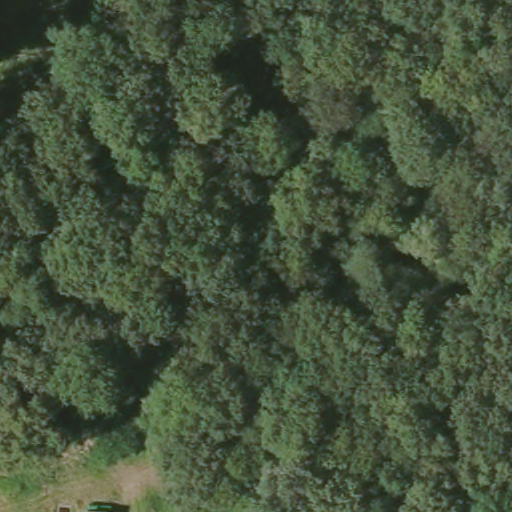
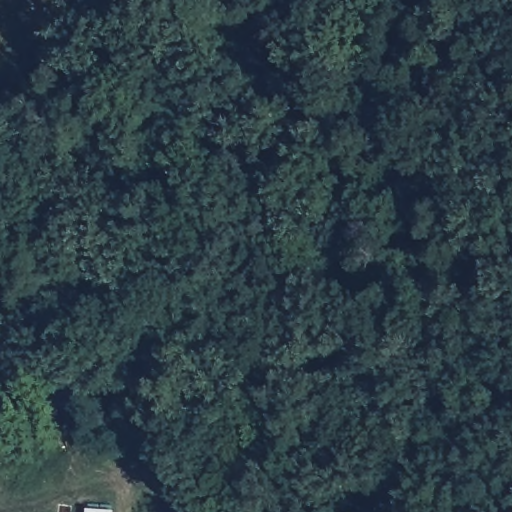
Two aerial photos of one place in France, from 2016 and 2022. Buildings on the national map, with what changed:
unchanged [(109,512),(82,512),(82,507),(110,507),(109,512)]

